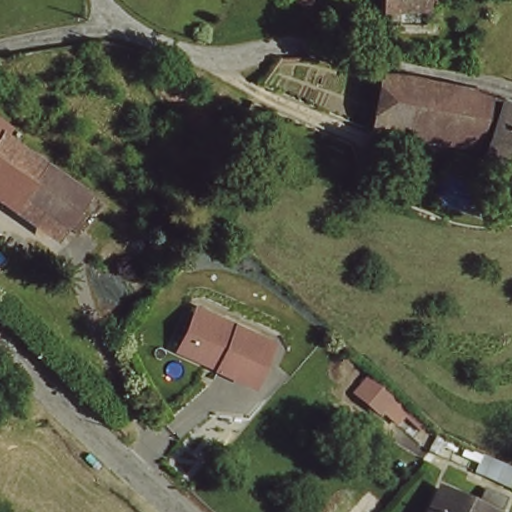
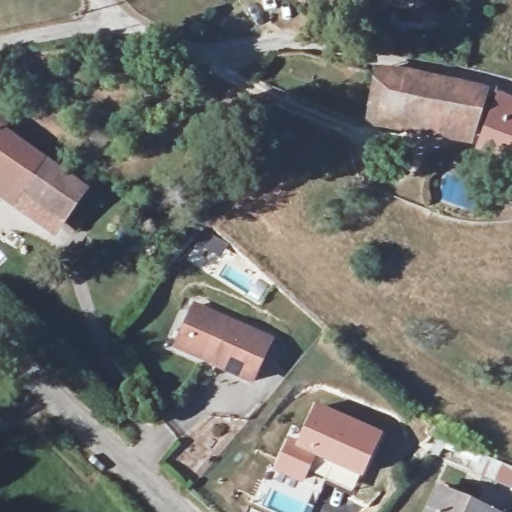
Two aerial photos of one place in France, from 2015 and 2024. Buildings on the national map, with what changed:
unchanged [(300,0),(300,1),(298,0),(300,0)]
unchanged [(385,6),(383,0),(423,0),(422,5),(385,6)]
unchanged [(368,119),(374,76),(374,74),(403,76),(484,92),(468,136),(368,119)]
unchanged [(479,148),(498,98),(512,104),(512,161),(479,148)]
unchanged [(468,136),(466,145),(366,130),(368,119),(468,136)]
unchanged [(48,169),(63,179),(73,186),(68,195),(83,205),(72,223),(69,227),(0,180),(0,135),(7,139),(48,169)]
unchanged [(423,194),(427,171),(437,173),(432,197),(423,194)]
unchanged [(231,316),(270,334),(251,378),(210,362),(171,342),(190,299),(231,316)]
new [(291,433),(301,437),(317,403),(383,432),(352,493),(322,478),(329,465),(315,458),(302,484),(271,469),(291,433)]
new [(446,439),(512,467),(512,490),(512,491),(462,470),(467,456),(442,448),(446,439)]
unchanged [(433,498),(466,512),(427,512),(433,498)]

